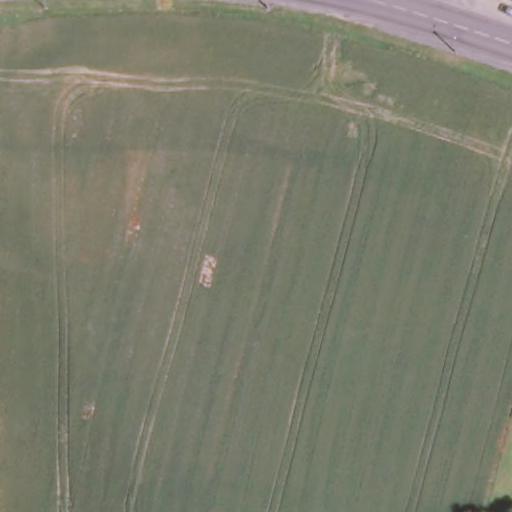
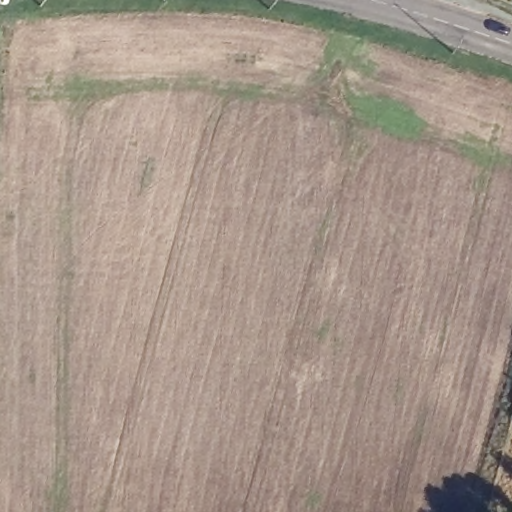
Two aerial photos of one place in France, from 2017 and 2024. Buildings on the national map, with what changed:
[]

